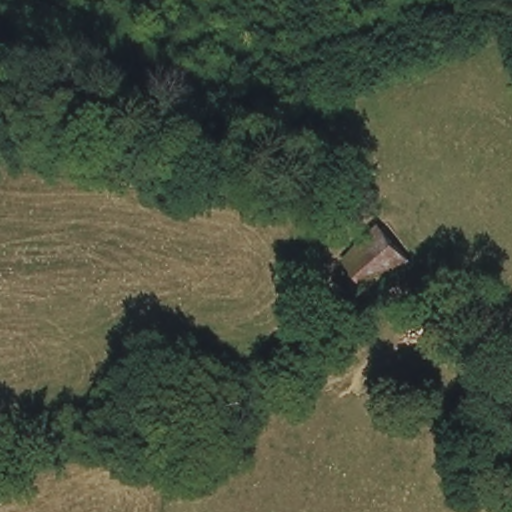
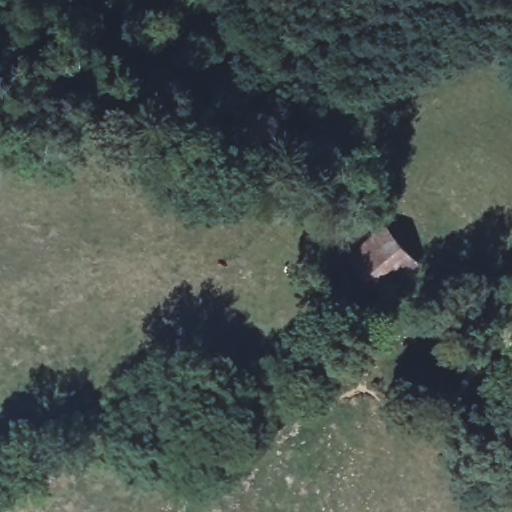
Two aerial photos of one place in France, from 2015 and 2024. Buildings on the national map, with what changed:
unchanged [(347,252),(385,222),(415,262),(378,294),(347,252)]

